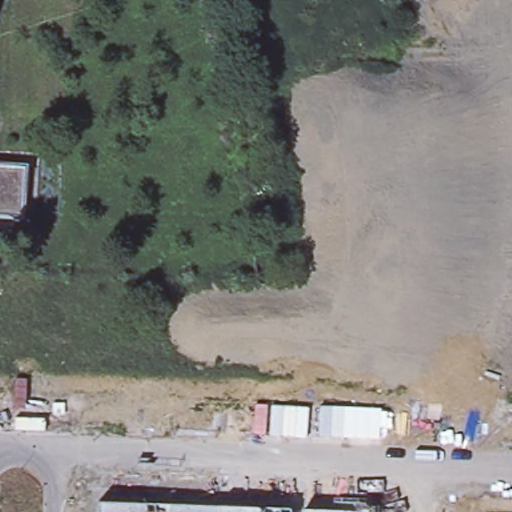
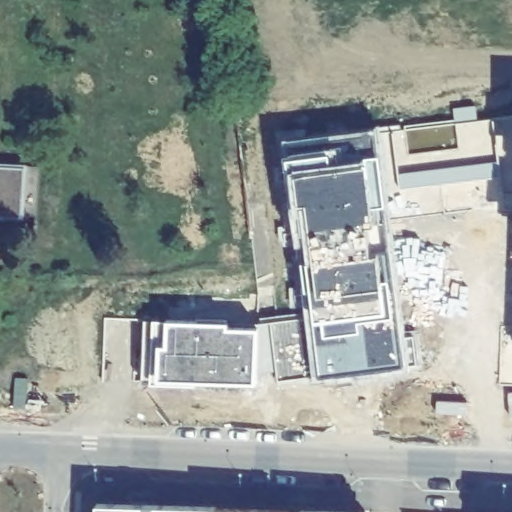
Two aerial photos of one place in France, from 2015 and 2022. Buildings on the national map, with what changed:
new [(374,133),(405,373),(312,383),(312,378),(278,382),(269,324),(304,320),(282,142),(374,133)]
unchanged [(27,219),(0,217),(0,159),(30,162),(27,219)]
new [(497,162),(499,176),(400,189),(398,174),(497,162)]
new [(226,326),(225,332),(256,333),(252,387),(142,381),(142,321),(226,326)]
new [(500,383),(501,326),(512,327),(512,384),(500,383)]
unchanged [(99,512),(100,503),(367,511),(366,512),(99,512)]

